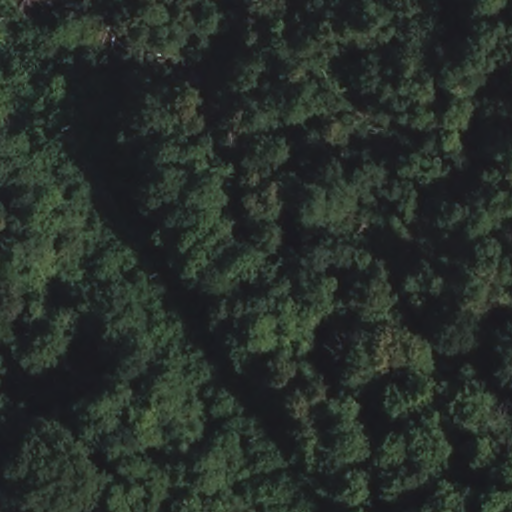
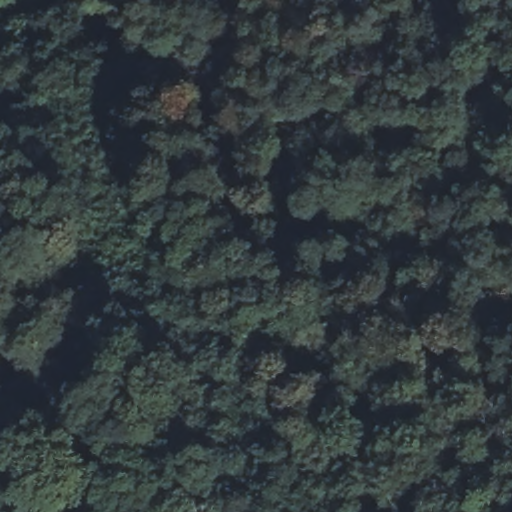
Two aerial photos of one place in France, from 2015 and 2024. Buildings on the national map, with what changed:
[]

